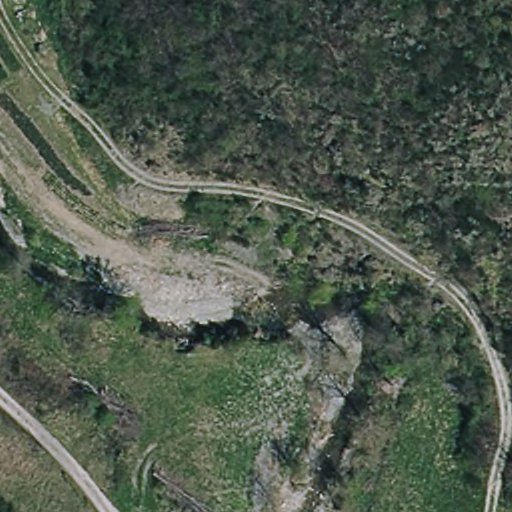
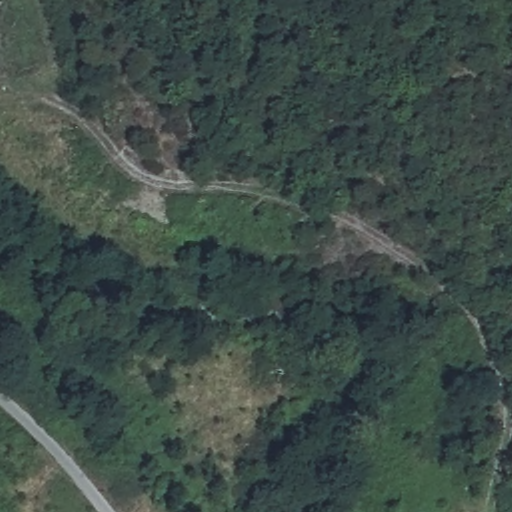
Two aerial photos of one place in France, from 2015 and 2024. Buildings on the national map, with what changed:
[]

